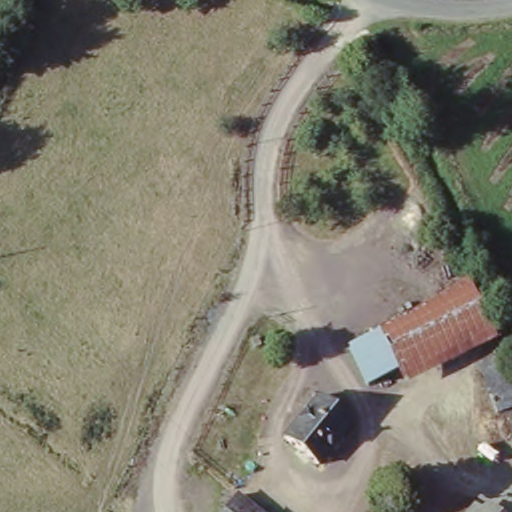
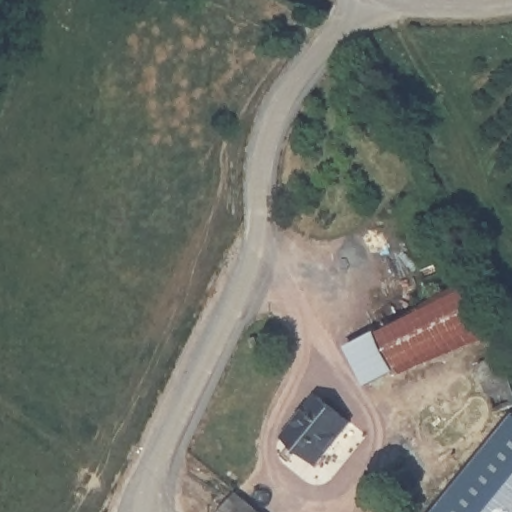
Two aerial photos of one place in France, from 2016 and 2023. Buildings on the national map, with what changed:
unchanged [(484,325),(396,370),(373,328),(371,323),(462,278),(484,325)]
unchanged [(363,385),(342,345),(373,328),(396,370),(363,385)]
demolished [(504,359),(512,383),(512,412),(497,416),(489,397),(479,368),(504,359)]
unchanged [(319,388),(357,415),(322,459),(289,433),(319,388)]
new [(512,512),(438,512),(512,422),(512,512)]
unchanged [(264,512),(219,512),(236,490),(264,512)]

